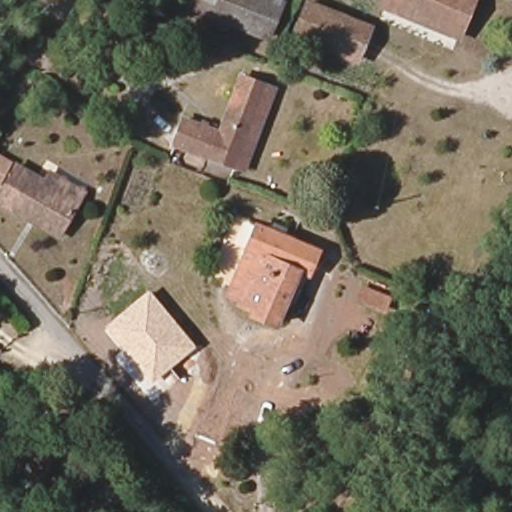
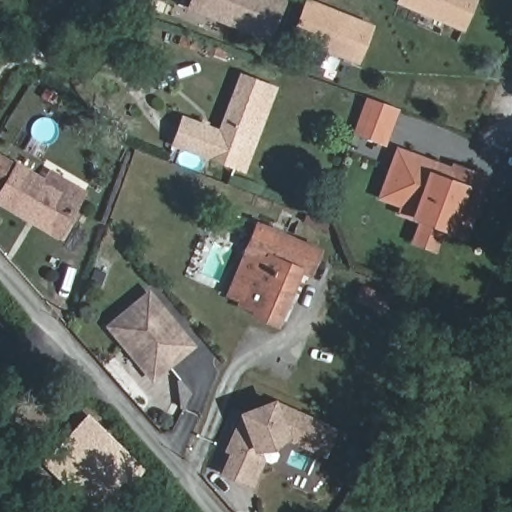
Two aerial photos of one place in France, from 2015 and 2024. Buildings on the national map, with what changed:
unchanged [(278,0),(263,31),(192,2),(192,0),(278,0)]
unchanged [(385,9),(389,0),(471,0),(455,40),(385,9)]
unchanged [(352,59),(295,30),(307,1),(367,28),(352,59)]
unchanged [(273,85),(245,169),(172,144),(183,114),(218,125),(238,73),(273,85)]
new [(365,97),(400,110),(386,146),(351,133),(365,97)]
new [(405,211),(407,203),(386,195),(402,151),(443,165),(442,169),(455,174),(458,165),(484,175),(475,201),(479,203),(467,234),(449,227),(440,252),(412,242),(422,217),(405,211)]
unchanged [(51,171),(88,192),(59,240),(0,208),(0,155),(48,177),(51,171)]
unchanged [(235,275),(258,221),(280,229),(318,243),(307,268),(299,265),(275,323),(248,313),(253,306),(241,299),(227,291),(235,275)]
unchanged [(395,298),(386,314),(356,302),(365,285),(395,298)]
unchanged [(151,383),(106,325),(149,289),(196,346),(151,383)]
new [(254,489),(221,475),(230,454),(224,452),(240,413),(276,398),(337,428),(326,458),(290,441),(275,450),(265,452),(266,461),(254,489)]
new [(44,461),(91,417),(143,470),(102,512),(95,512),(44,461)]

